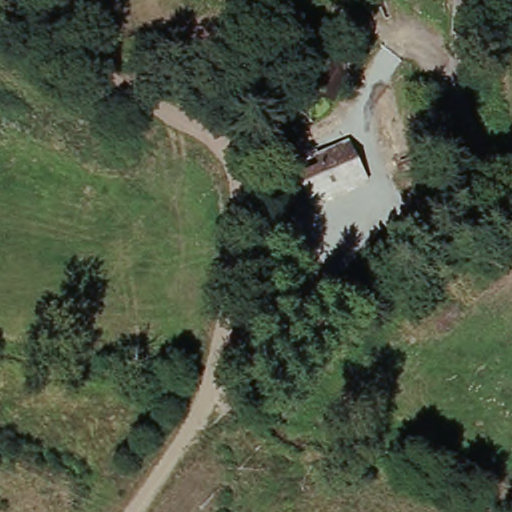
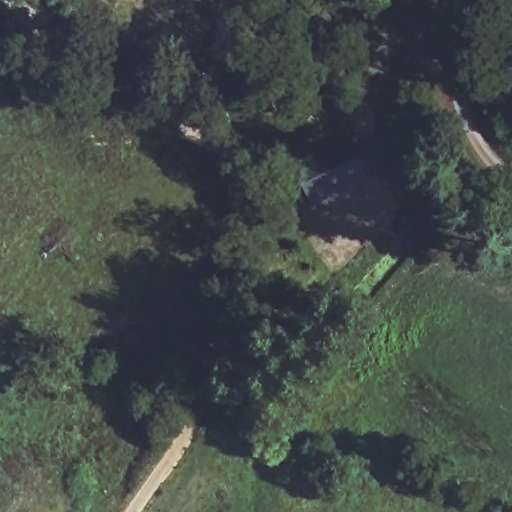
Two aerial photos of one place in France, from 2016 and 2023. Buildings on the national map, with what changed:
unchanged [(297,182),(317,170),(310,157),(339,139),(363,180),(314,211),(297,182)]

